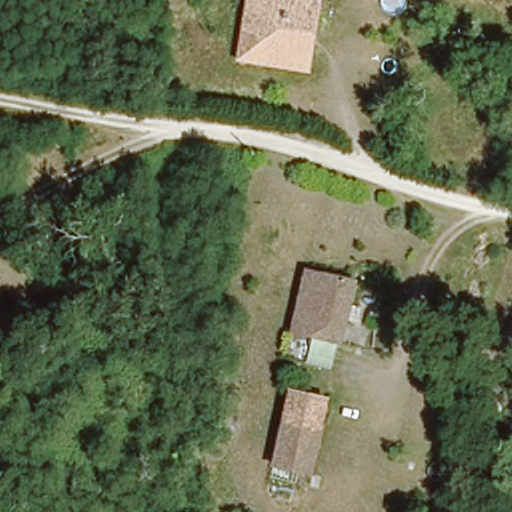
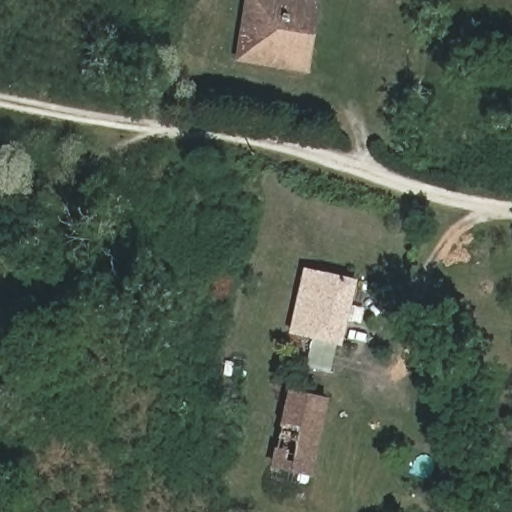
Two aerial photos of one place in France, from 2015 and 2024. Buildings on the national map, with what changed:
unchanged [(280,67),(242,60),(251,0),(291,0),(280,67)]
unchanged [(291,0),(310,0),(313,1),(304,71),(280,67),(291,0)]
unchanged [(336,344),(312,337),(315,323),(295,318),(308,272),(350,283),(336,344)]
unchanged [(310,469),(276,462),(291,392),(325,400),(310,469)]
unchanged [(417,512),(417,507),(444,510),(444,512),(417,512)]

